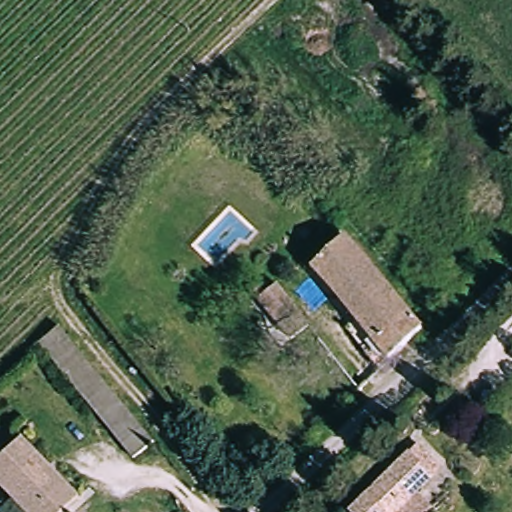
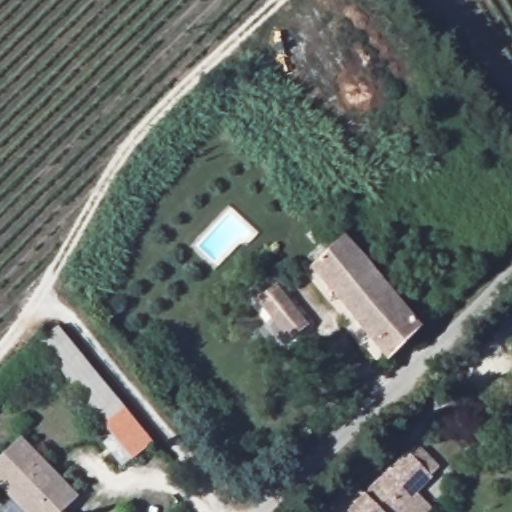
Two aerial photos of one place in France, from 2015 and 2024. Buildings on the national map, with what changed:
unchanged [(342,238),(417,327),(385,359),(308,266),(342,238)]
unchanged [(288,340),(255,300),(272,284),(306,323),(288,340)]
unchanged [(49,324),(110,401),(88,417),(28,340),(49,324)]
unchanged [(148,448),(125,465),(88,417),(110,401),(148,448)]
unchanged [(69,512),(19,512),(0,488),(0,453),(17,439),(73,509),(69,512)]
unchanged [(428,512),(350,512),(349,510),(408,449),(416,442),(441,468),(433,476),(417,492),(433,508),(428,512)]

